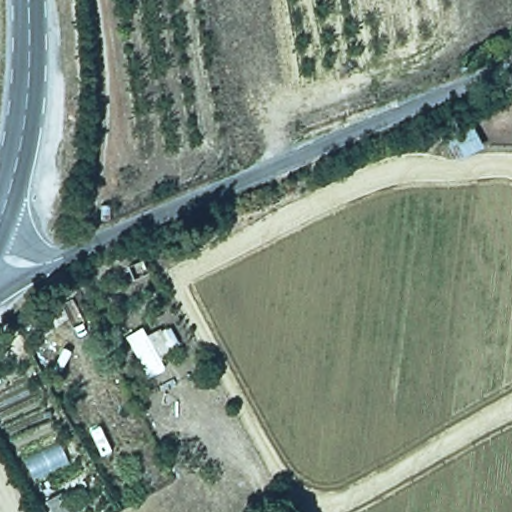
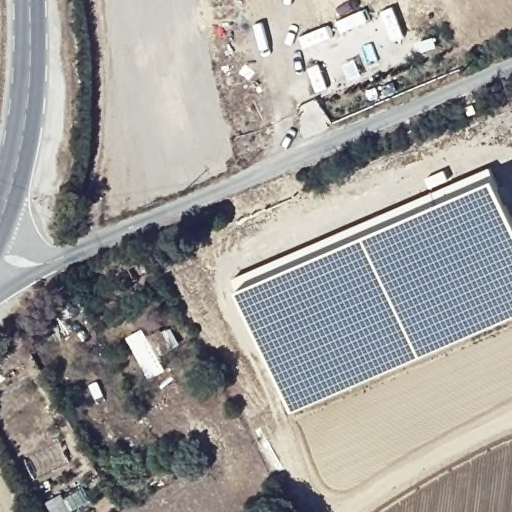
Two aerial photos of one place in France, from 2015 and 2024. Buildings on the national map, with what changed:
new [(512,216),(512,317),(290,413),(231,278),(491,165),(512,216)]
unchanged [(163,370),(146,380),(125,338),(143,328),(163,370)]

